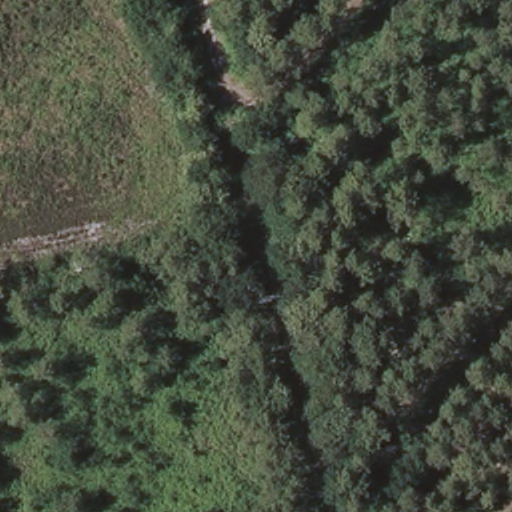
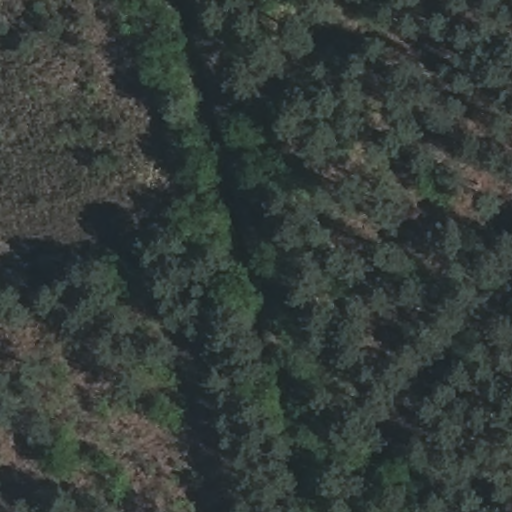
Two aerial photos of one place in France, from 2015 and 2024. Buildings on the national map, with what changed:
[]

